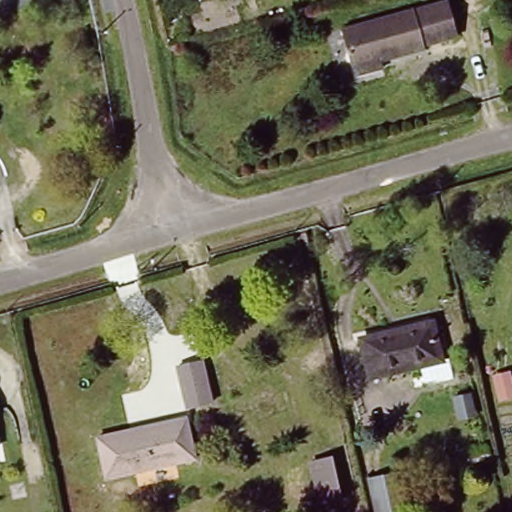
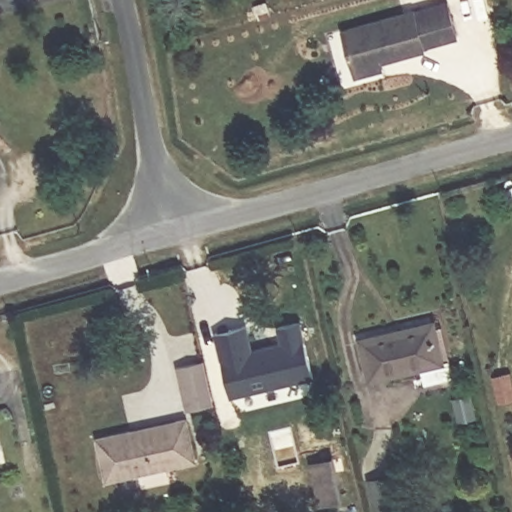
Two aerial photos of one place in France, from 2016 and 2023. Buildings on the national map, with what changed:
unchanged [(353,70),(352,62),(342,23),(434,0),(449,0),(458,32),(423,41),(425,44),(380,55),(382,62),(353,70)]
unchanged [(455,369),(427,376),(422,360),(372,372),(362,333),(432,317),(433,322),(442,320),(450,350),(440,352),(441,355),(450,353),(455,369)]
new [(314,376),(232,396),(217,334),(248,326),(254,350),(283,343),(279,327),(301,322),(314,376)]
new [(203,364),(213,405),(188,410),(178,369),(203,364)]
unchanged [(460,398),(477,394),(482,416),(465,420),(460,398)]
unchanged [(97,436),(128,429),(130,434),(175,423),(175,419),(185,416),(195,459),(107,479),(97,436)]
unchanged [(477,451),(495,447),(498,462),(479,466),(477,451)]
unchanged [(311,463),(332,457),(342,499),(320,504),(311,463)]
unchanged [(385,476),(399,473),(404,492),(409,512),(377,512),(370,479),(385,476)]

